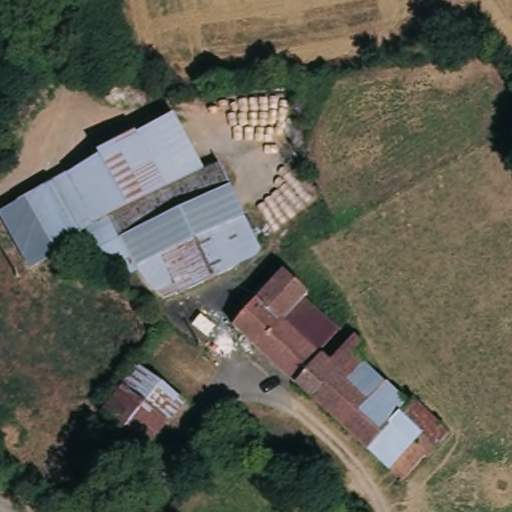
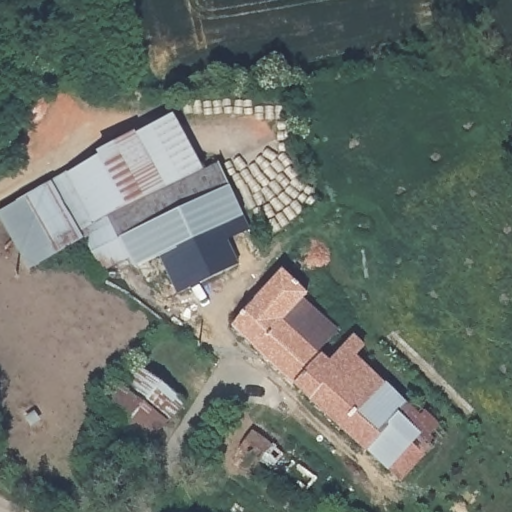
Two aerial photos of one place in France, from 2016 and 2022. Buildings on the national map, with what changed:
unchanged [(97,153),(137,132),(138,136),(176,116),(205,171),(219,164),(261,250),(252,260),(166,301),(147,287),(137,273),(108,284),(86,241),(29,272),(0,216),(0,211),(51,183),(97,153)]
unchanged [(306,296),(352,340),(355,334),(367,346),(358,357),(410,406),(416,401),(451,436),(434,451),(432,447),(403,481),(390,472),(367,452),(297,386),(234,328),(282,272),(306,296)]
unchanged [(152,447),(140,463),(132,457),(120,447),(123,443),(126,440),(130,434),(103,413),(142,373),(186,406),(182,410),(167,428),(167,430),(163,433),(160,437),(152,447)]
unchanged [(292,500),(292,498),(285,493),(281,490),(279,488),(276,492),(273,489),(272,487),(267,482),(261,477),(260,476),(256,472),(250,466),(247,463),(246,464),(242,468),(241,470),(239,467),(238,467),(237,467),(236,467),(235,468),(231,471),(220,460),(217,457),(218,456),(219,455),(221,453),(230,444),(232,442),(236,437),(239,434),(240,433),(260,451),(302,487),(292,500)]

